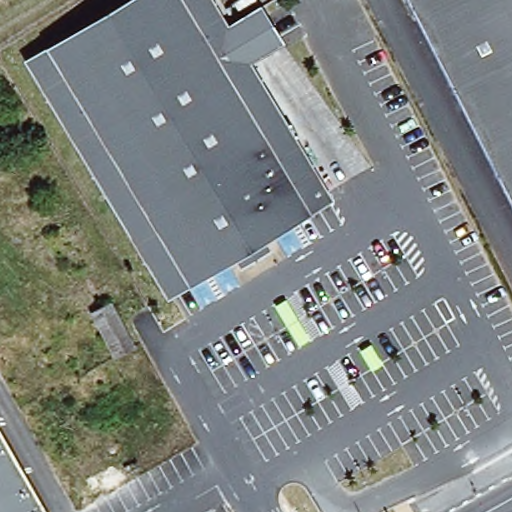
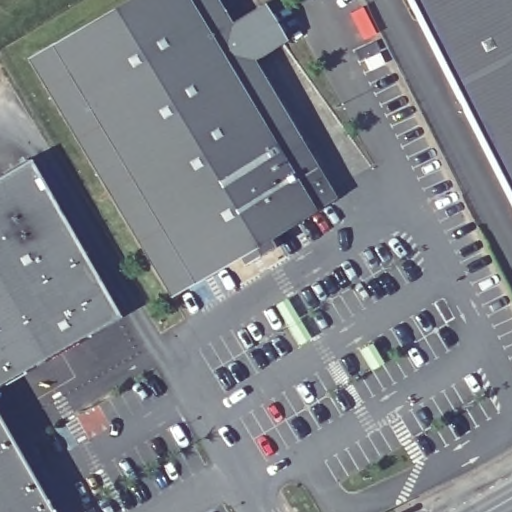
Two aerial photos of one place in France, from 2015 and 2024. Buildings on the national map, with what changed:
unchanged [(322,201),(222,259),(164,293),(28,60),(87,26),(131,0),(207,0),(224,30),(259,9),(283,50),(247,71),(322,201)]
unchanged [(512,214),(409,0),(512,0),(512,214)]
new [(26,160),(116,318),(0,381),(0,175),(26,160)]
demolished [(109,299),(133,341),(115,351),(91,310),(109,299)]
unchanged [(42,512),(0,512),(0,438),(42,512)]
demolished [(162,512),(127,512),(115,493),(193,452),(210,485),(162,512)]

